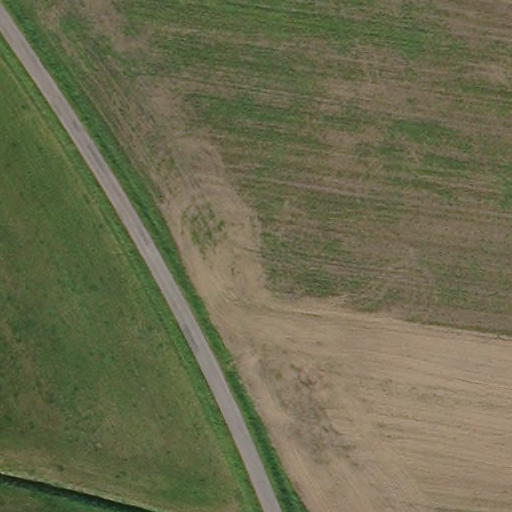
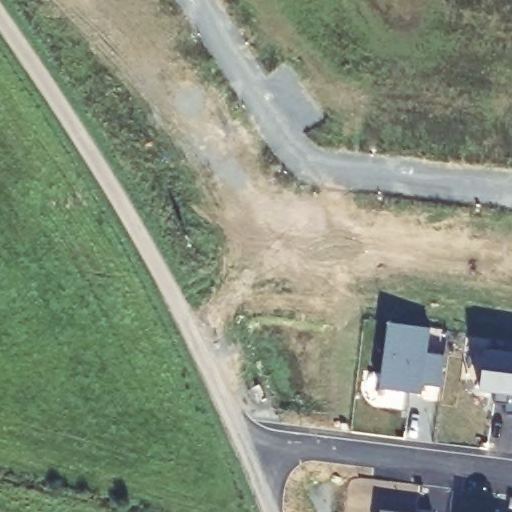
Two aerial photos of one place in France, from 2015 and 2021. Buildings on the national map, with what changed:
new [(387,320),(429,326),(426,350),(443,353),(440,385),(422,384),(421,393),(379,388),(387,320)]
new [(483,352),(512,356),(512,417),(503,416),(505,406),(492,405),(493,394),(478,392),(483,352)]
new [(399,512),(378,512),(378,509),(399,512)]

